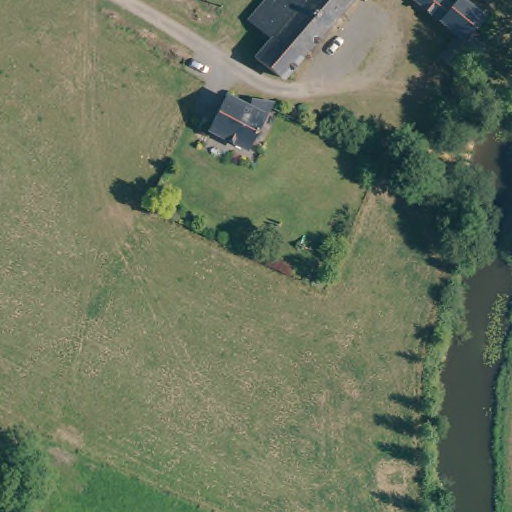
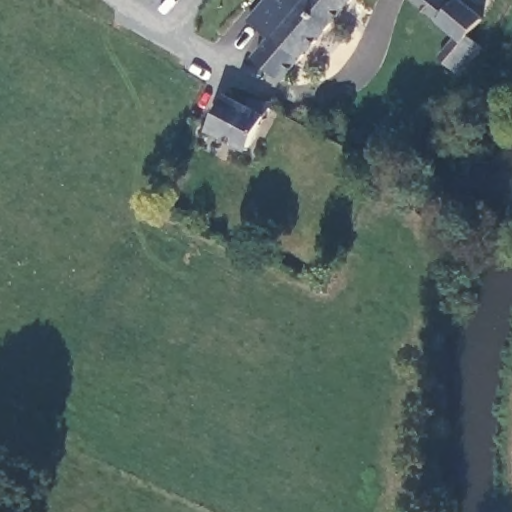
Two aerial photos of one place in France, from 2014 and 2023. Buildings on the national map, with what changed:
unchanged [(248,56),(265,37),(244,17),(260,0),(351,0),(273,81),(248,56)]
unchanged [(417,0),(452,0),(455,2),(457,0),(475,0),(493,13),(471,41),(417,0)]
unchanged [(254,111),(258,103),(276,109),(250,156),(249,157),(228,145),(209,133),(231,98),(254,111)]

